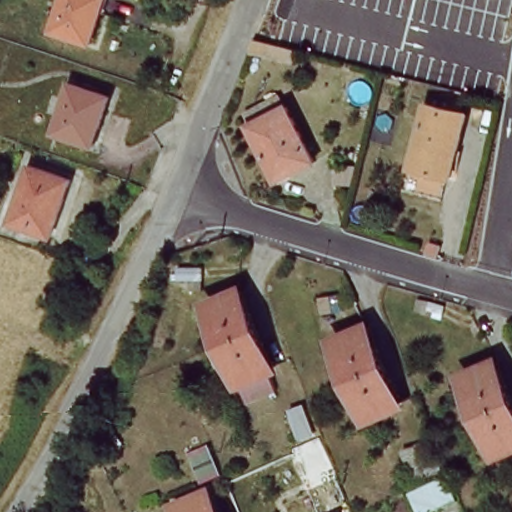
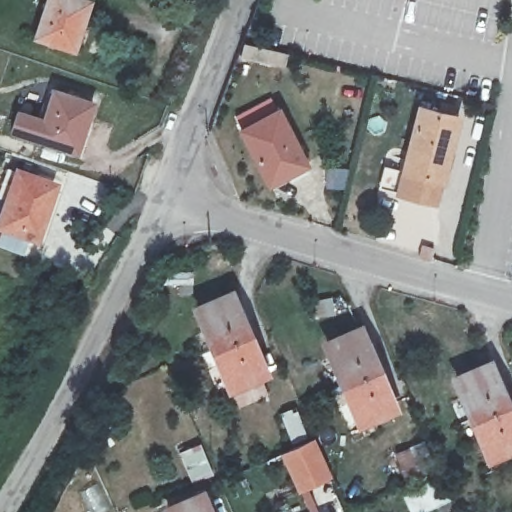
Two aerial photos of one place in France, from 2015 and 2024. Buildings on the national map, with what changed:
unchanged [(93,2),(79,52),(40,41),(52,0),(87,0),(93,2)]
unchanged [(45,126),(56,94),(93,107),(75,157),(39,145),(13,136),(20,117),(45,126)]
unchanged [(464,113),(447,181),(442,179),(437,200),(400,190),(424,103),(464,113)]
unchanged [(274,112),(312,167),(277,191),(237,136),(274,112)]
unchanged [(58,190),(37,247),(0,233),(19,175),(58,190)]
unchanged [(265,374),(233,388),(200,314),(232,300),(265,374)]
unchanged [(359,339),(390,410),(359,424),(327,354),(359,339)]
unchanged [(512,448),(495,457),(460,385),(495,369),(512,406),(512,448)]
new [(336,480),(302,494),(284,456),(319,441),(336,480)]
unchanged [(209,512),(166,512),(163,504),(198,487),(209,512)]

